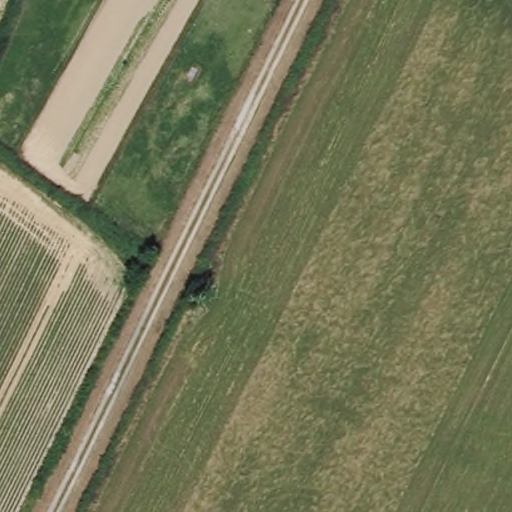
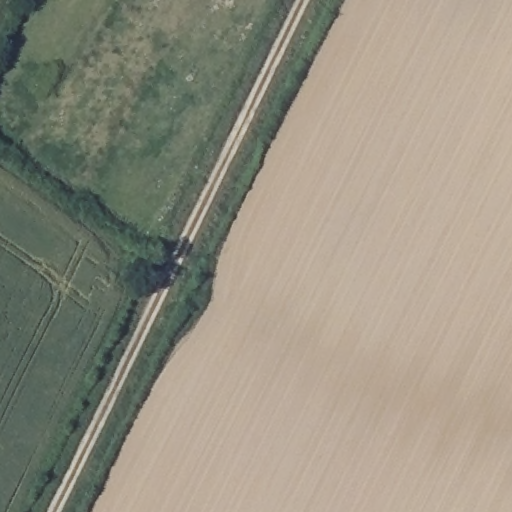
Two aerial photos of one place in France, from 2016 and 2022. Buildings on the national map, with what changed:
[]

